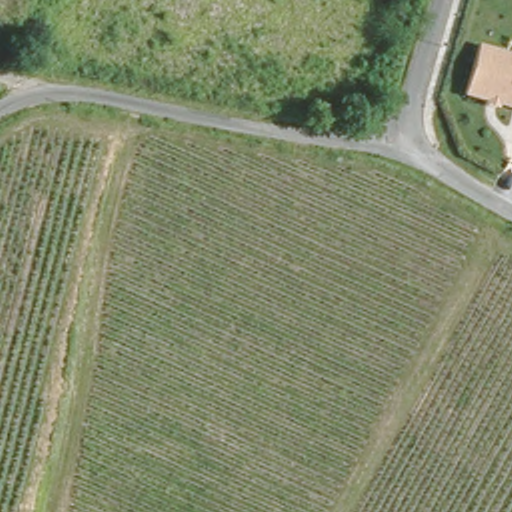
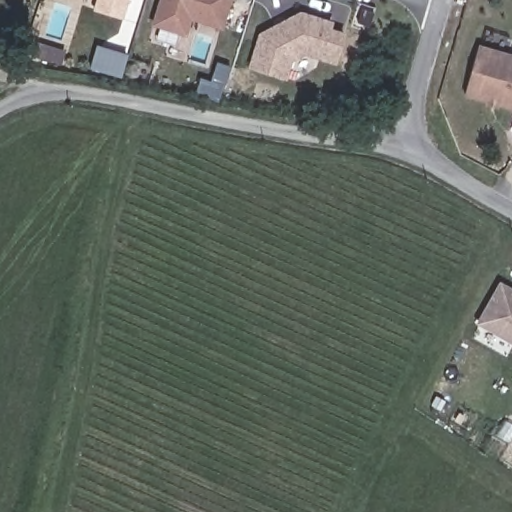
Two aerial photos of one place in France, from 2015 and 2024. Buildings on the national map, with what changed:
new [(167,0),(234,0),(227,25),(195,16),(191,33),(159,24),(167,0)]
new [(267,31),(305,9),(335,18),(333,24),(347,28),(339,55),(310,47),(298,55),(292,73),(257,63),(267,31)]
unchanged [(477,44),(512,53),(512,109),(463,97),(477,44)]
new [(512,295),(512,346),(478,327),(500,288),(512,295)]

